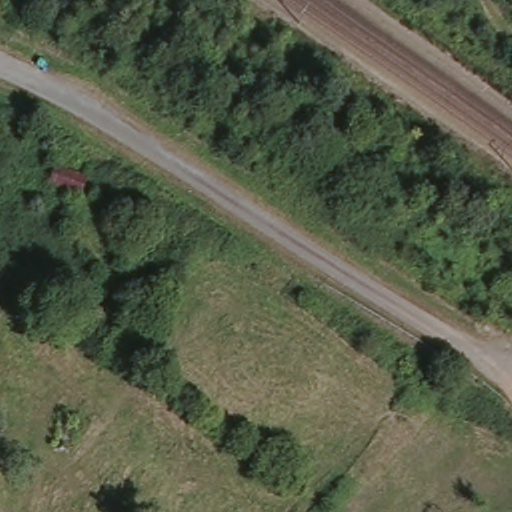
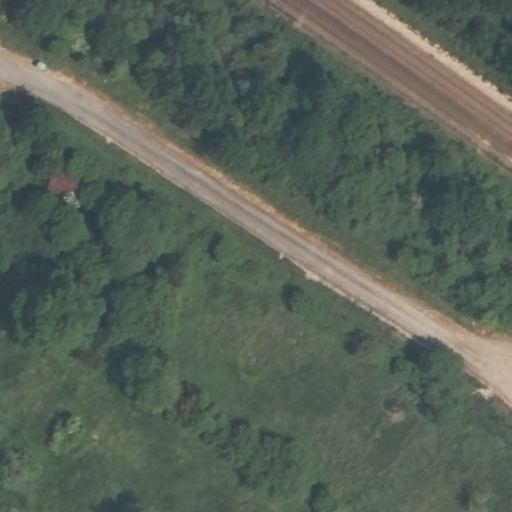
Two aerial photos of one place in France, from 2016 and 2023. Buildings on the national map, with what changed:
unchanged [(50,166),(81,178),(71,202),(41,191),(50,166)]
unchanged [(67,416),(82,426),(65,450),(51,439),(67,416)]

